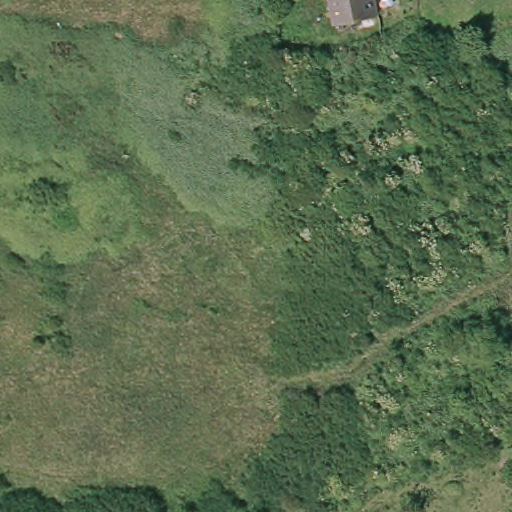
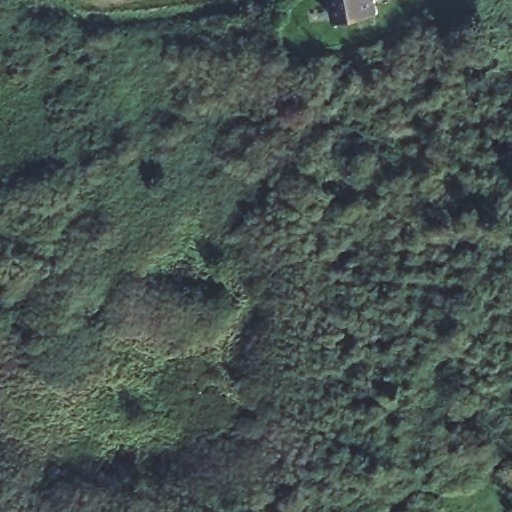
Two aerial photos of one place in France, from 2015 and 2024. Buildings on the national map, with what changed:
unchanged [(378,8),(336,17),(332,0),(376,0),(378,8)]

